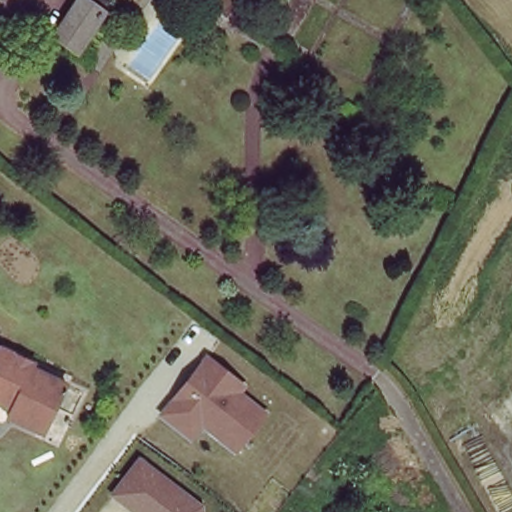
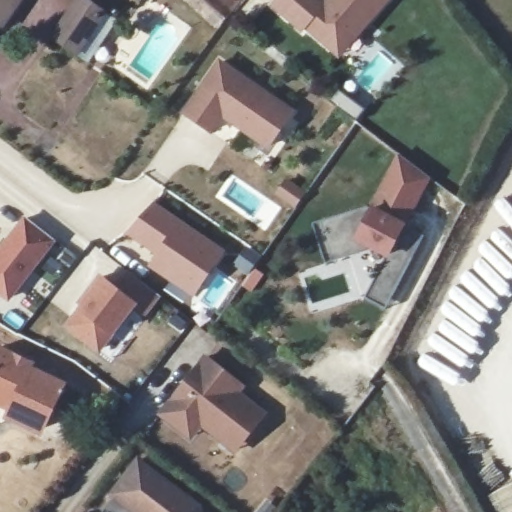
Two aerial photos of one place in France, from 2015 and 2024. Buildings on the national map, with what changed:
unchanged [(0,0),(18,0),(15,4),(5,19),(0,16),(0,0)]
unchanged [(55,41),(82,0),(101,0),(112,8),(110,10),(78,56),(75,54),(55,41)]
new [(304,21),(301,25),(271,0),(272,0),(380,0),(351,33),(338,50),(326,40),(304,21)]
new [(217,59),(289,109),(265,143),(220,111),(208,128),(182,109),(217,59)]
new [(362,295),(370,280),(384,252),(373,245),(323,263),(309,219),(319,215),(364,202),(368,204),(396,151),(425,173),(412,198),(400,222),(422,232),(392,291),(385,307),(362,295)]
new [(226,249),(194,296),(148,265),(156,254),(125,232),(154,201),(226,249)]
new [(55,243),(8,303),(0,296),(0,246),(24,215),(55,243)]
new [(116,284),(128,271),(161,298),(147,316),(135,308),(100,353),(65,324),(103,274),(116,284)]
unchanged [(33,364),(66,380),(55,403),(46,399),(42,407),(45,409),(37,428),(8,414),(14,403),(6,399),(3,404),(0,402),(0,344),(35,360),(33,364)]
unchanged [(203,353),(246,386),(243,392),(268,411),(233,454),(201,429),(190,442),(156,416),(203,353)]
unchanged [(137,457),(203,504),(204,512),(130,512),(109,496),(137,457)]

